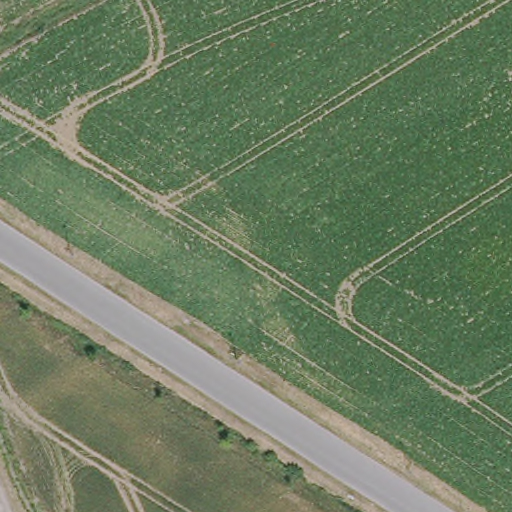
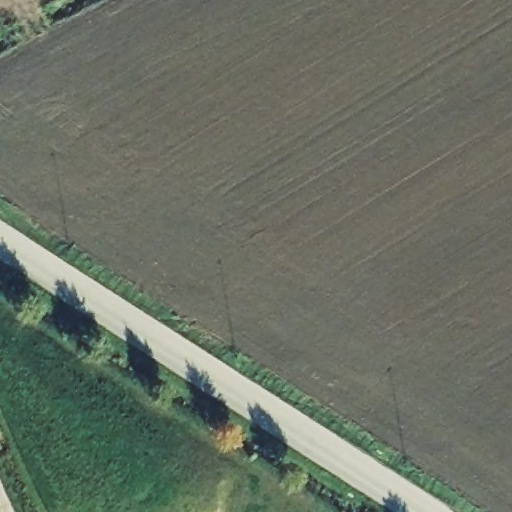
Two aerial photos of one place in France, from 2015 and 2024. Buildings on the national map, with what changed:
[]

